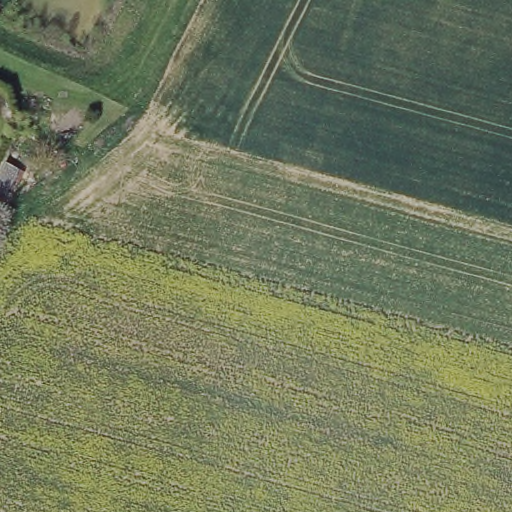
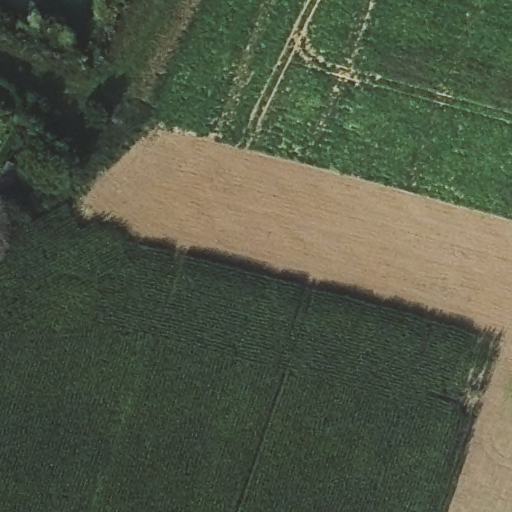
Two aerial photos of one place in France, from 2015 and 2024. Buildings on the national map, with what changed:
unchanged [(0,215),(0,176),(5,167),(22,174),(5,217),(0,215)]

